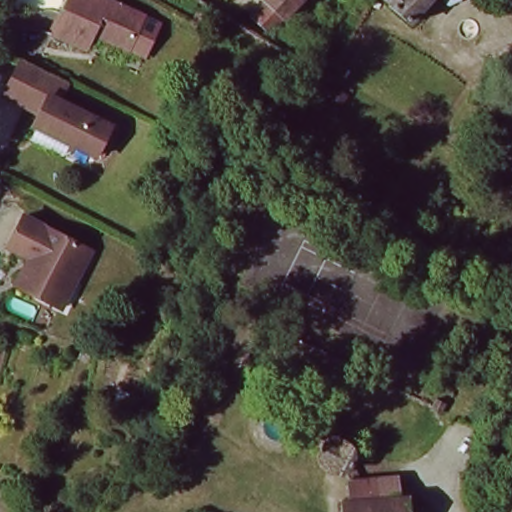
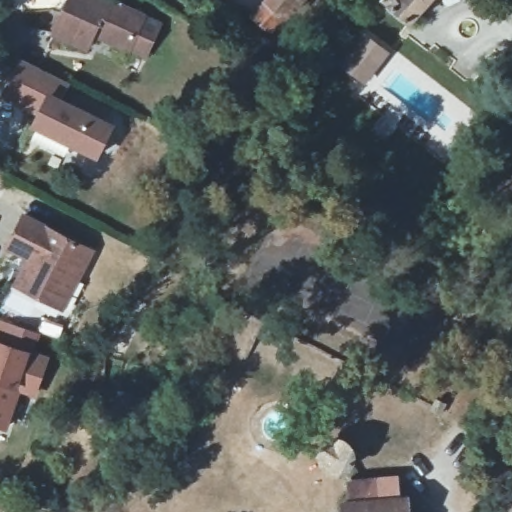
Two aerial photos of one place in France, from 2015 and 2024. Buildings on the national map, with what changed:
unchanged [(70,0),(107,0),(147,19),(132,50),(94,32),(86,47),(55,33),(70,0)]
unchanged [(262,0),(317,0),(308,9),(298,2),(267,34),(247,16),(262,0)]
unchanged [(405,25),(386,0),(427,0),(405,25)]
unchanged [(446,2),(443,2),(440,0),(451,0),(446,2)]
unchanged [(62,101),(115,129),(99,157),(47,129),(52,119),(29,107),(7,95),(25,61),(46,72),(70,84),(62,101)]
unchanged [(31,258),(13,252),(28,217),(95,247),(67,308),(17,290),(31,258)]
new [(40,333),(35,351),(49,355),(37,398),(20,393),(8,431),(0,428),(0,319),(40,333)]
unchanged [(86,346),(98,350),(93,361),(82,357),(86,346)]
unchanged [(398,500),(404,500),(405,512),(342,512),(342,502),(351,502),(350,477),(385,476),(397,476),(398,500)]

